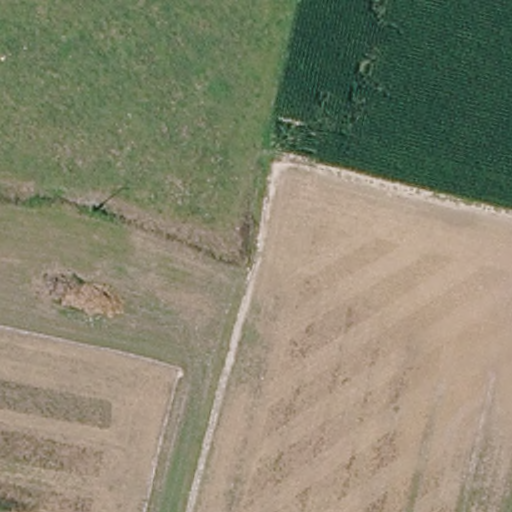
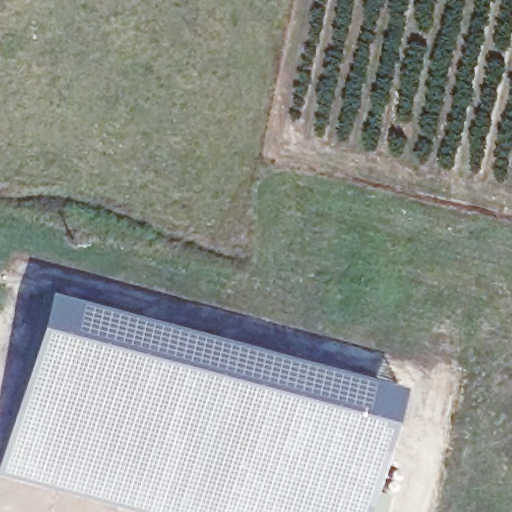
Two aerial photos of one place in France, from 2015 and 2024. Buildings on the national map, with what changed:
new [(56,291),(393,385),(376,445),(382,447),(370,487),(391,493),(386,512),(152,512),(3,470),(50,300),(53,300),(56,291)]

